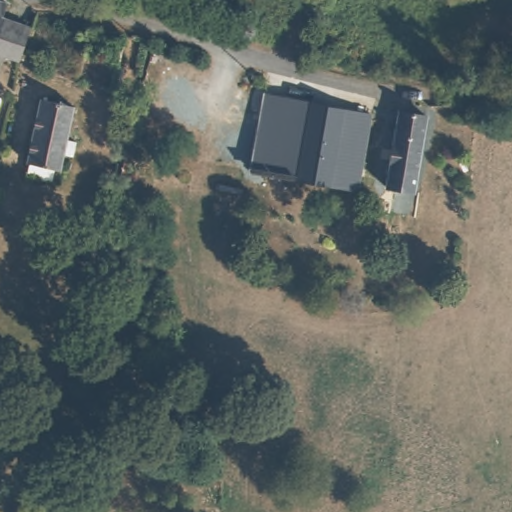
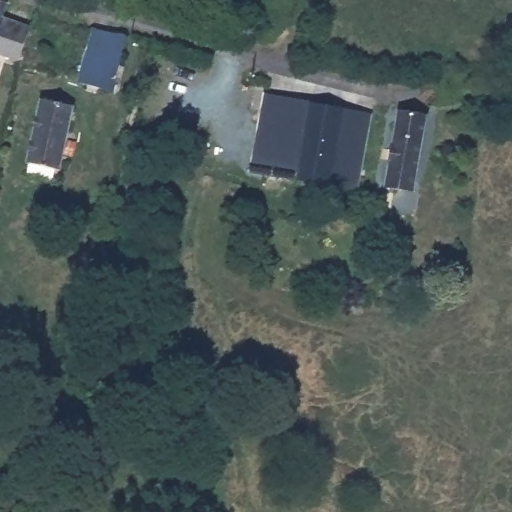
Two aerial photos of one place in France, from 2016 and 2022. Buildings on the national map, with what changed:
unchanged [(0,53),(0,0),(3,0),(7,1),(3,13),(34,22),(24,51),(2,45),(0,53)]
new [(92,26),(127,37),(112,92),(77,83),(92,26)]
unchanged [(258,167),(272,89),(313,97),(299,175),(258,167)]
unchanged [(299,175),(313,97),(371,109),(359,184),(311,176),(309,189),(297,187),(299,175)]
unchanged [(27,162),(42,101),(74,108),(59,171),(27,162)]
unchanged [(414,187),(387,183),(400,107),(427,112),(414,187)]

